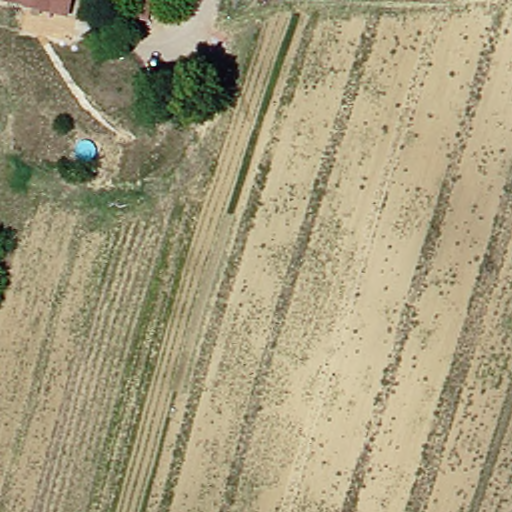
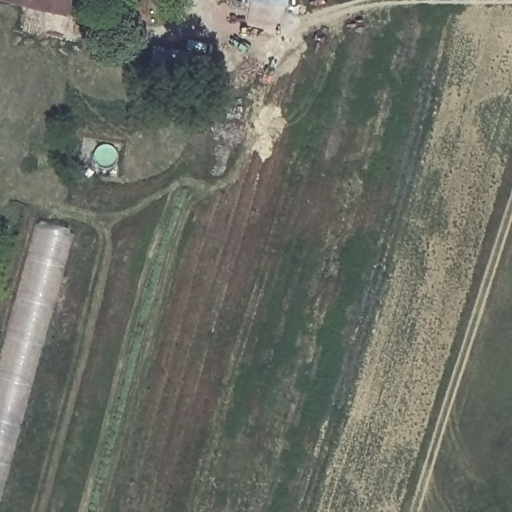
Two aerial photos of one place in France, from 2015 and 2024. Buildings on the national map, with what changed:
unchanged [(69,0),(66,13),(8,0),(69,0)]
new [(73,234),(0,501),(0,359),(36,226),(73,234)]

